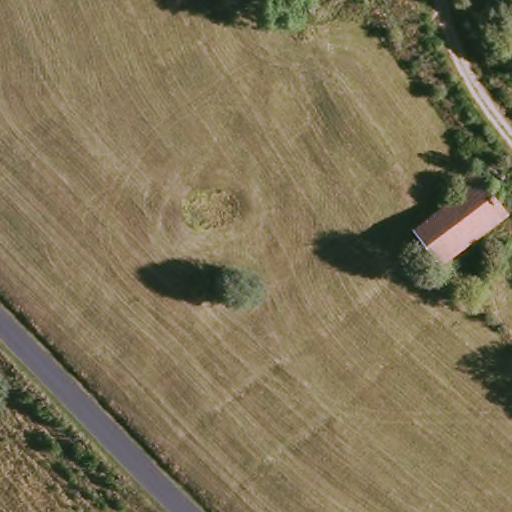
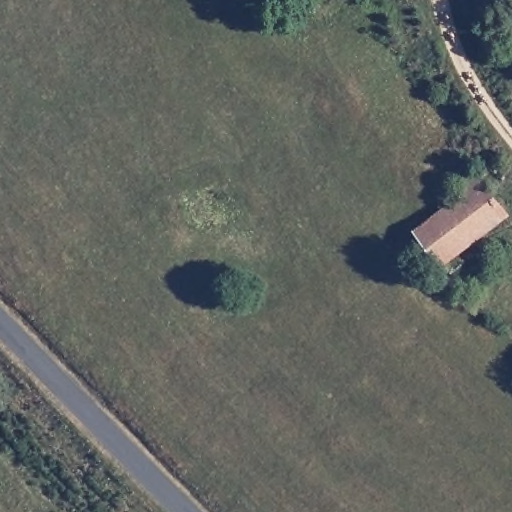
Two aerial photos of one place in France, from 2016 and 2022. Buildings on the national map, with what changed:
unchanged [(467,192),(460,181),(474,171),(509,217),(447,265),(417,229),(467,192)]

